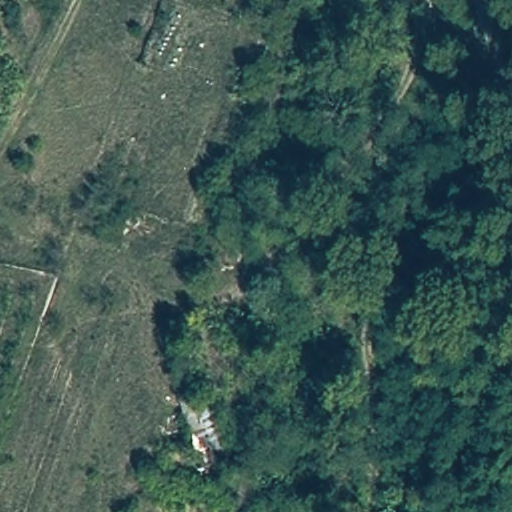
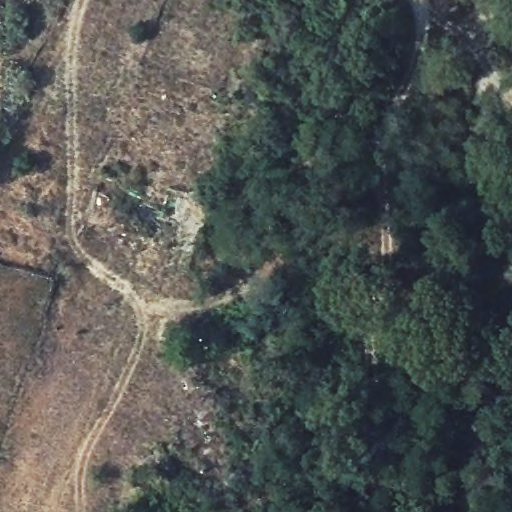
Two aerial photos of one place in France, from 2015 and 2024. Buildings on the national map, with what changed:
unchanged [(199,459),(174,400),(202,391),(226,449),(199,459)]

